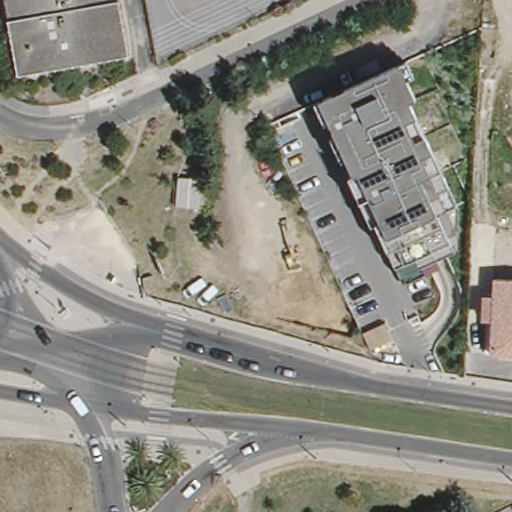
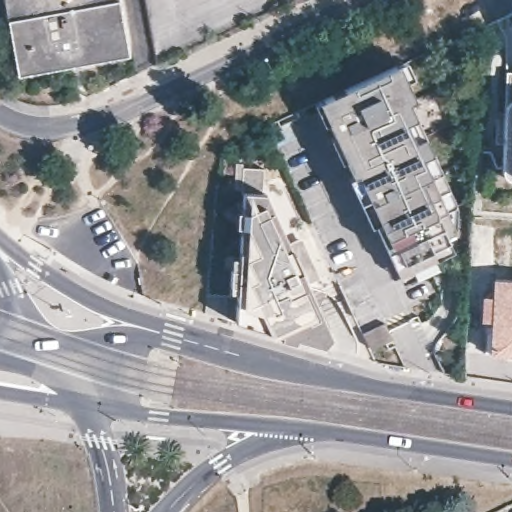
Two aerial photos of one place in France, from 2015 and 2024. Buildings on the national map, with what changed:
unchanged [(22,76),(9,0),(121,0),(132,56),(22,76)]
unchanged [(400,71),(456,207),(434,220),(453,252),(396,275),(383,251),(315,104),(400,71)]
new [(503,175),(501,168),(504,105),(506,71),(512,71),(512,180),(506,180),(503,175)]
new [(245,162),(244,167),(265,168),(264,192),(268,191),(292,242),(302,237),(321,278),(309,283),(331,336),(323,347),(297,340),(296,344),(281,340),(282,336),(278,335),(272,336),(270,330),(235,320),(237,293),(230,292),(232,257),(241,257),(243,227),(237,226),(238,211),(242,211),(243,189),(235,189),(236,161),(245,162)]
demolished [(501,229),(512,229),(512,282),(500,281),(501,229)]
unchanged [(490,320),(498,321),(500,281),(512,282),(512,356),(490,355),(490,320)]

